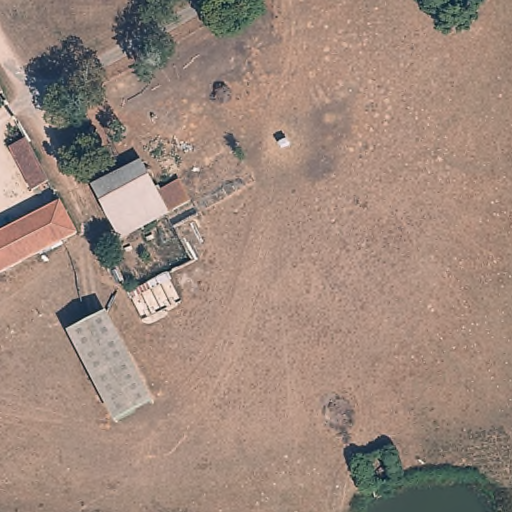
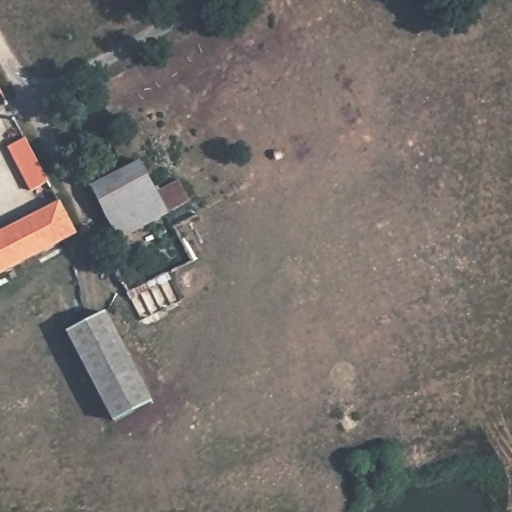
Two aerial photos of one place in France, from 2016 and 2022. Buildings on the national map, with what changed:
unchanged [(2,98),(0,99),(0,93),(2,98)]
unchanged [(26,148),(49,191),(32,201),(9,157),(26,148)]
unchanged [(179,185),(191,208),(120,245),(119,244),(92,191),(94,191),(141,166),(157,196),(179,185)]
unchanged [(60,207),(60,208),(76,238),(0,278),(0,238),(60,207)]
unchanged [(131,298),(127,293),(169,274),(171,280),(131,298)]
unchanged [(69,331),(105,313),(152,402),(116,421),(69,331)]

